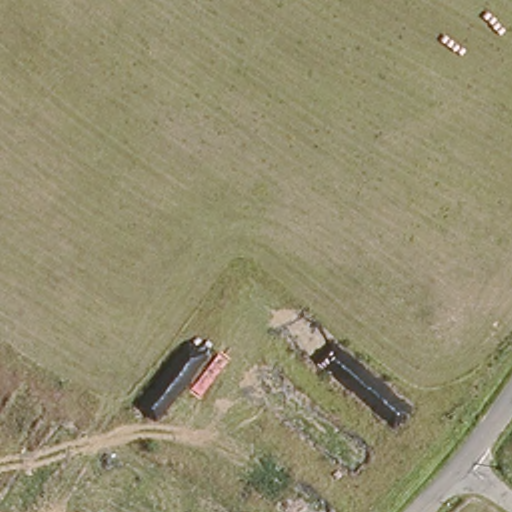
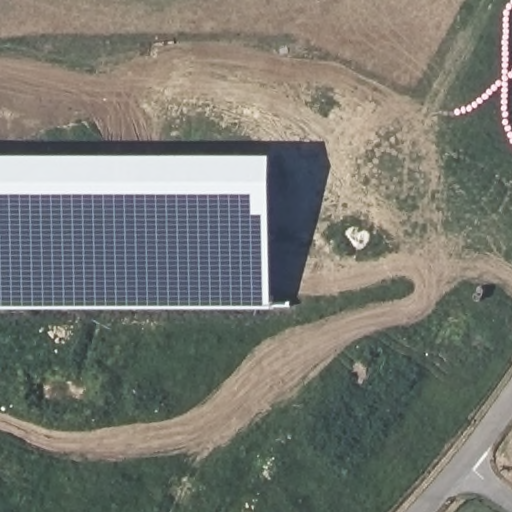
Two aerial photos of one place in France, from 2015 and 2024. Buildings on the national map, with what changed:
new [(0,308),(0,154),(270,155),(272,308),(0,308)]

